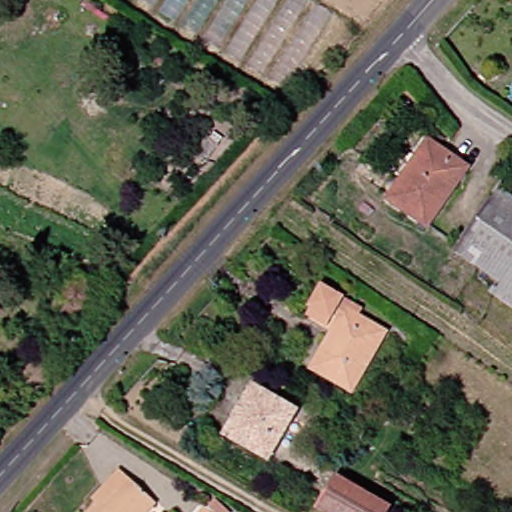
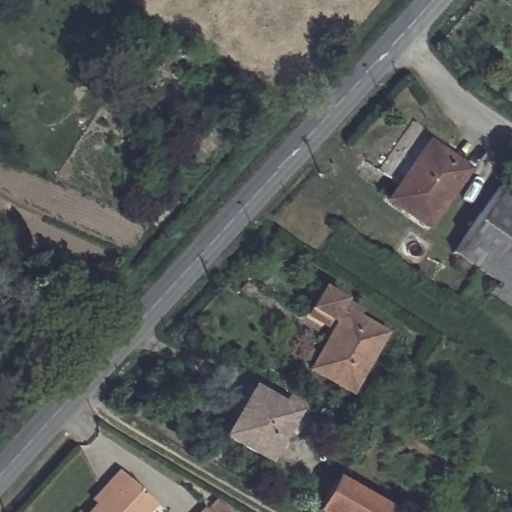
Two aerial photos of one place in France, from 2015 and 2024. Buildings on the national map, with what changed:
demolished [(140,0),(310,0),(332,14),(285,92),(140,0)]
unchanged [(468,172),(425,224),(387,193),(432,142),(468,172)]
unchanged [(512,177),(512,295),(500,286),(508,276),(460,239),(510,176),(512,177)]
unchanged [(90,271),(101,287),(66,314),(55,297),(90,271)]
unchanged [(333,330),(306,312),(323,286),(361,310),(358,315),(386,332),(349,390),(319,370),(310,364),(333,330)]
unchanged [(45,366),(15,388),(3,374),(31,351),(45,366)]
unchanged [(296,412),(264,457),(225,431),(255,385),(296,412)]
unchanged [(112,482),(123,470),(159,500),(147,512),(92,512),(116,485),(112,482)]
unchanged [(340,473),(396,506),(392,512),(332,512),(319,505),(340,473)]
unchanged [(212,512),(210,512),(211,511),(212,512)]

